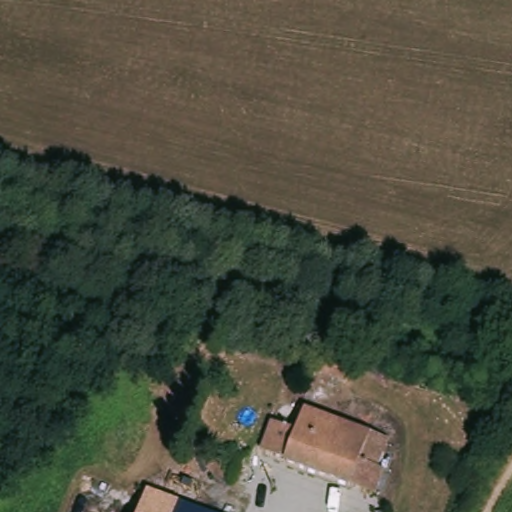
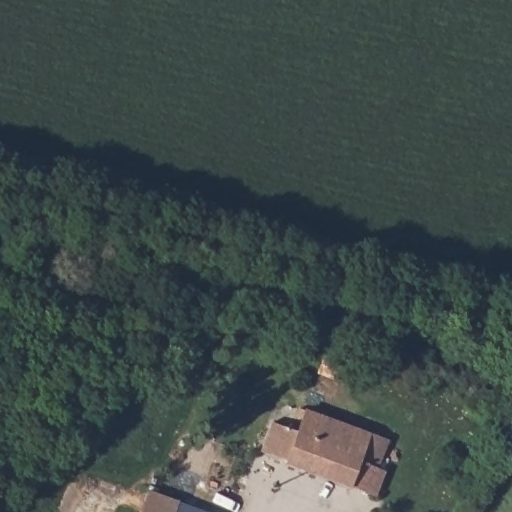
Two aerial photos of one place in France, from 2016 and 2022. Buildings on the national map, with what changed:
unchanged [(351,366),(345,380),(320,371),(325,357),(325,356),(351,366)]
unchanged [(259,452),(260,450),(270,421),(298,430),(306,410),(390,441),(385,456),(389,457),(375,495),(350,486),(348,489),(287,466),(289,462),(263,452),(259,452)]
unchanged [(246,507),(244,512),(178,512),(176,512),(175,511),(160,505),(168,480),(246,507)]
unchanged [(145,501),(160,505),(175,511),(176,512),(178,512),(141,512),(145,503),(145,501)]

